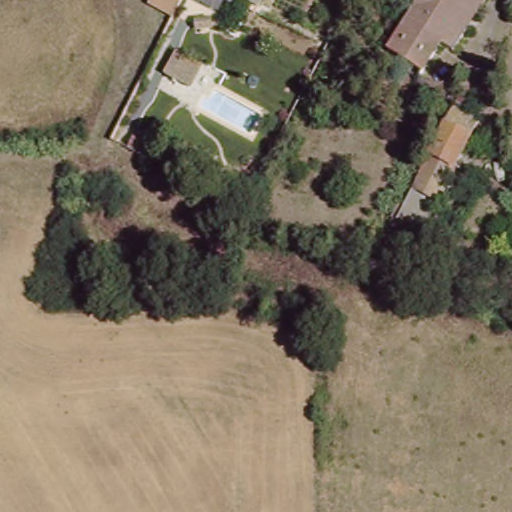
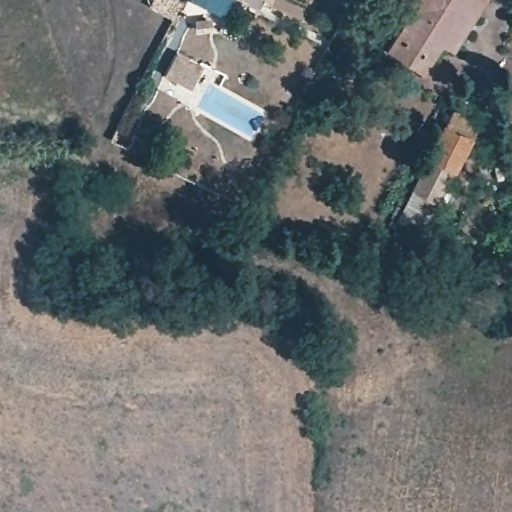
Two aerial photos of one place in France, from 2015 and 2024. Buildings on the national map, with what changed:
unchanged [(177,17),(153,5),(155,0),(186,0),(177,17)]
unchanged [(264,11),(244,0),(268,0),(264,11)]
unchanged [(388,52),(409,12),(398,5),(400,0),(461,0),(461,1),(468,6),(445,48),(440,45),(426,71),(388,52)]
unchanged [(458,55),(445,48),(468,6),(461,1),(461,0),(487,0),(458,55)]
unchanged [(179,59),(204,72),(193,96),(168,85),(179,59)]
unchanged [(413,207),(433,168),(451,129),(452,126),(459,132),(454,144),(469,152),(428,232),(404,221),(413,207)]
unchanged [(151,157),(143,173),(123,163),(131,147),(151,157)]

